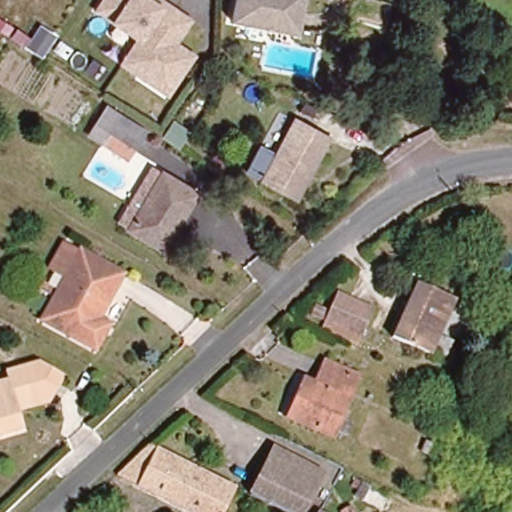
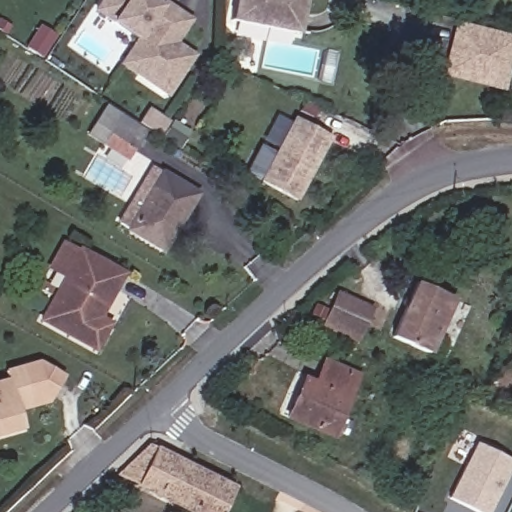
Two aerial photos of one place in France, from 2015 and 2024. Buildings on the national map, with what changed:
unchanged [(194,57),(176,83),(164,75),(155,87),(122,65),(140,40),(98,11),(105,0),(160,0),(166,4),(192,22),(176,45),(194,57)]
unchanged [(227,21),(233,0),(303,0),(296,37),(227,21)]
new [(455,21),(512,35),(512,60),(504,91),(442,76),(455,21)]
unchanged [(112,120),(137,137),(128,151),(102,136),(112,120)]
unchanged [(298,199),(263,181),(297,120),(331,138),(298,199)]
unchanged [(165,246),(122,221),(154,167),(197,192),(165,246)]
unchanged [(106,337),(97,352),(44,323),(70,280),(52,269),(65,246),(122,275),(99,318),(112,327),(106,337)]
unchanged [(450,301),(425,352),(388,333),(415,283),(450,301)]
unchanged [(359,341),(323,323),(336,298),(372,314),(359,341)]
unchanged [(0,383),(5,382),(2,373),(37,363),(61,377),(49,402),(16,412),(20,431),(0,436),(0,383)]
unchanged [(356,381),(329,438),(285,417),(292,402),(300,385),(311,388),(322,366),(356,381)]
demolished [(448,412),(437,407),(445,392),(455,397),(448,412)]
new [(472,424),(462,419),(468,403),(478,409),(472,424)]
unchanged [(137,442),(234,493),(224,512),(194,512),(108,470),(137,442)]
new [(494,512),(482,512),(453,498),(481,442),(512,458),(512,477),(494,512)]
demolished [(249,490),(260,472),(275,481),(290,452),(320,469),(299,512),(294,512),(249,490)]
demolished [(317,507),(326,512),(314,512),(317,507)]

